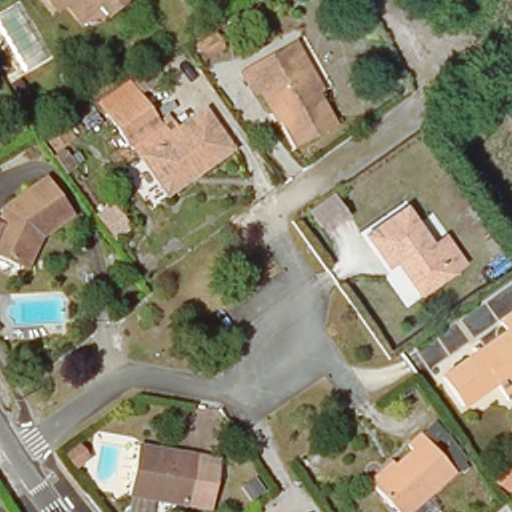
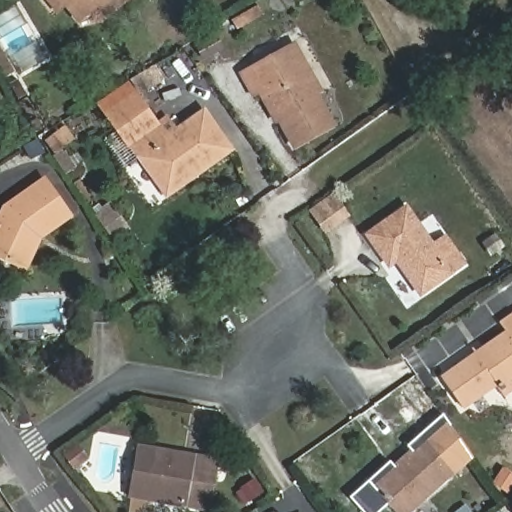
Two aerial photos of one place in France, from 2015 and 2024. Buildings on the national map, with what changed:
unchanged [(98,8),(80,23),(66,6),(58,14),(46,0),(129,0),(107,19),(98,8)]
unchanged [(334,123),(297,144),(266,86),(257,91),(244,69),(292,44),(334,123)]
unchanged [(134,86),(146,79),(155,74),(164,89),(156,94),(143,102),(134,86)]
unchanged [(141,166),(133,154),(130,155),(108,122),(99,111),(131,94),(137,102),(159,133),(166,128),(175,140),(204,119),(229,153),(233,158),(194,184),(172,200),(166,204),(141,166)]
unchanged [(18,272),(0,264),(0,231),(6,217),(44,189),(70,225),(48,241),(40,247),(28,277),(18,272)]
unchanged [(331,194),(347,215),(325,230),(310,209),(331,194)]
unchanged [(98,214),(111,204),(125,224),(112,234),(98,214)]
unchanged [(433,244),(447,235),(466,263),(422,292),(398,257),(389,262),(369,231),(407,207),(433,244)]
unchanged [(505,327),(512,322),(512,337),(505,327)]
unchanged [(511,401),(502,388),(468,411),(448,381),(512,337),(512,400),(511,401)]
unchanged [(414,451),(426,440),(459,476),(418,512),(398,512),(379,492),(374,486),(397,466),(402,472),(419,456),(414,451)]
unchanged [(131,494),(139,444),(184,452),(216,458),(214,468),(208,507),(131,494)]

